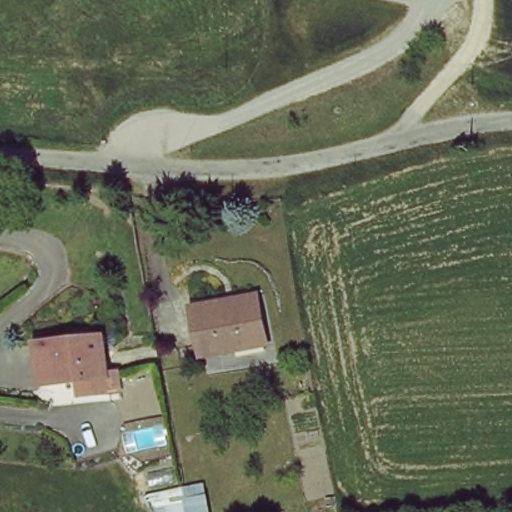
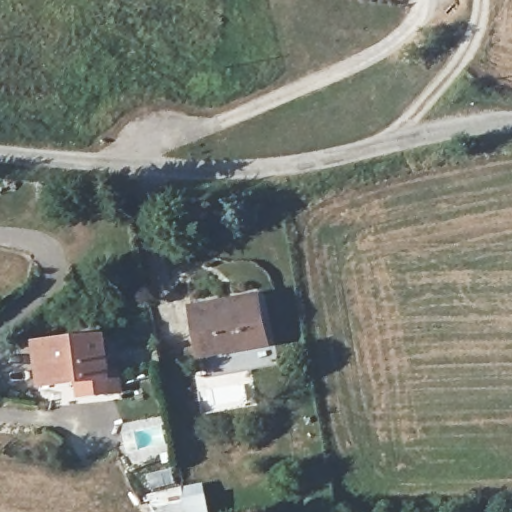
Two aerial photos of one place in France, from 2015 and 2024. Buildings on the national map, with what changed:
unchanged [(203,362),(195,318),(231,312),(264,306),(266,318),(271,350),(203,362)]
unchanged [(75,387),(43,388),(40,348),(109,343),(116,399),(77,403),(75,387)]
unchanged [(144,512),(207,500),(208,512),(144,512)]

